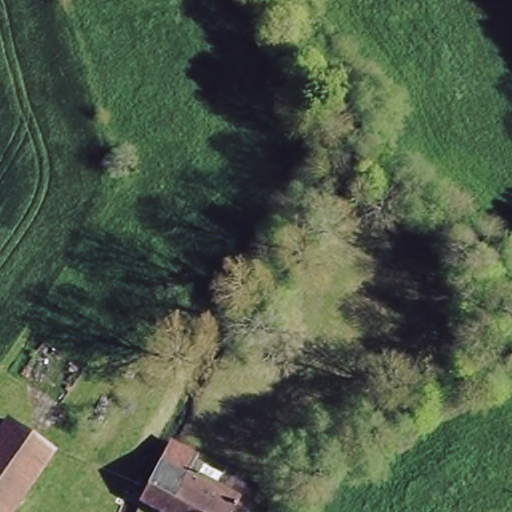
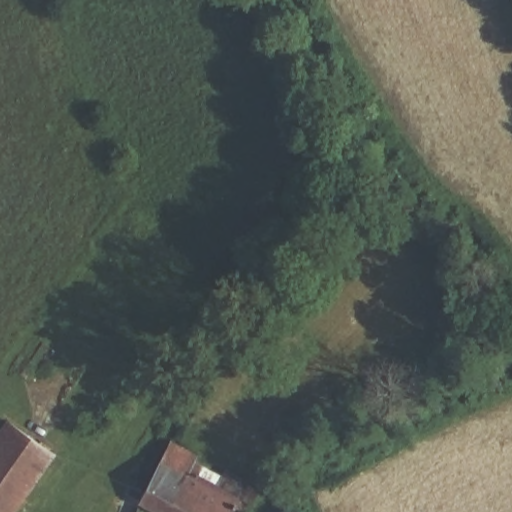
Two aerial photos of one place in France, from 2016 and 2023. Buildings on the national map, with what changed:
unchanged [(88,447),(32,512),(0,512),(0,468),(45,412),(88,447)]
unchanged [(204,466),(193,479),(234,512),(143,512),(133,504),(176,446),(204,466)]

